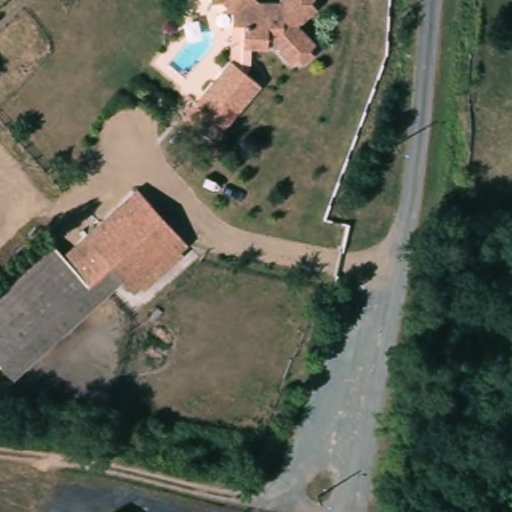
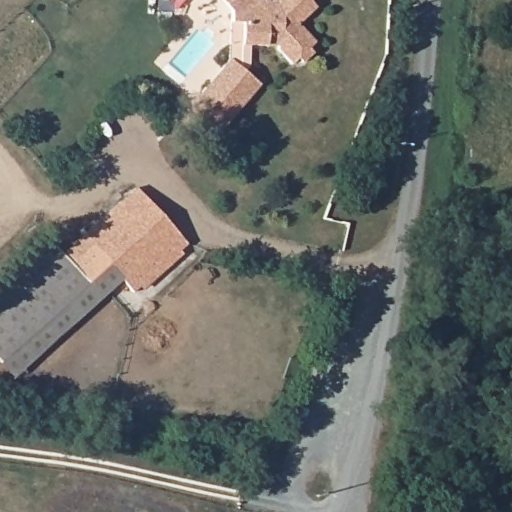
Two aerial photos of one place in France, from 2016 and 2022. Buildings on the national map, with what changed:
unchanged [(237,9),(228,0),(227,0),(317,0),(321,6),(303,24),(318,43),(315,46),(318,51),(314,54),(306,61),(299,58),(293,61),(287,54),(281,46),(247,44),(235,43),(237,20),(237,9)]
unchanged [(188,118),(224,76),(253,100),(215,142),(188,118)]
unchanged [(193,247),(126,307),(99,278),(84,264),(71,250),(140,189),(144,193),(185,238),(193,247)]
unchanged [(13,361),(0,348),(0,297),(61,239),(71,250),(84,264),(99,278),(13,361)]

